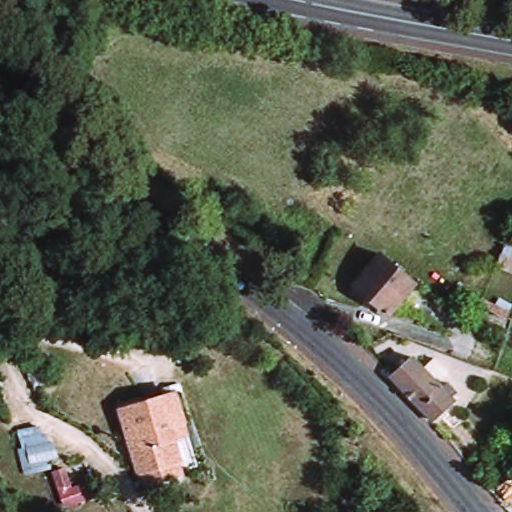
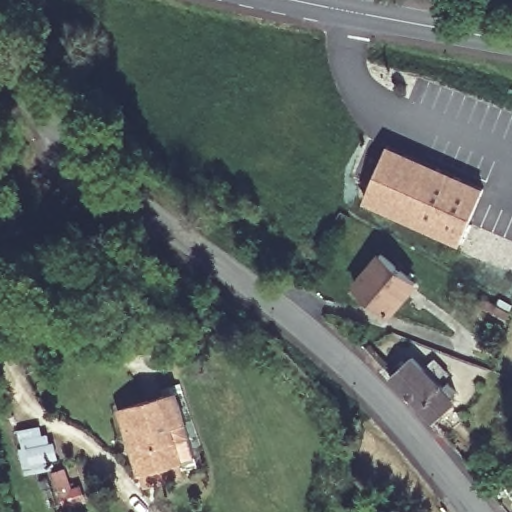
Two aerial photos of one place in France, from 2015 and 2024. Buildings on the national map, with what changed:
new [(388,145),(484,188),(460,243),(364,200),(388,145)]
unchanged [(389,315),(354,286),(380,254),(415,283),(389,315)]
demolished [(497,266),(501,254),(512,258),(512,257),(512,272),(497,266)]
unchanged [(510,312),(507,317),(480,304),(482,299),(510,312)]
unchanged [(442,389),(447,383),(456,393),(450,398),(455,401),(432,421),(390,377),(412,357),(423,369),(438,384),(442,389)]
unchanged [(449,374),(439,384),(425,369),(435,359),(449,374)]
unchanged [(145,486),(142,474),(139,474),(120,411),(175,394),(183,423),(187,436),(173,440),(180,462),(178,463),(182,474),(145,486)]
unchanged [(57,458),(32,464),(28,449),(27,442),(47,437),(50,443),(52,443),(57,458)]
unchanged [(70,489),(61,492),(55,473),(65,469),(70,489)]
unchanged [(66,506),(62,494),(75,489),(78,501),(66,506)]

